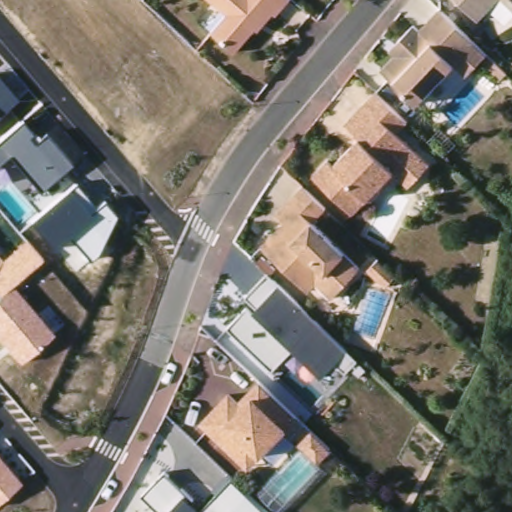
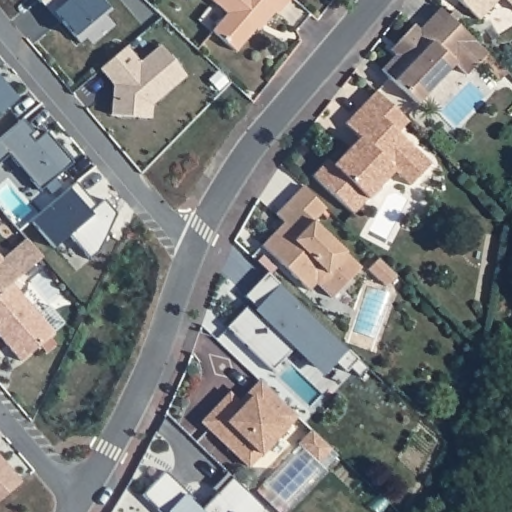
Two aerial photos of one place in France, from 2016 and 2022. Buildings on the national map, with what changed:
new [(75,37),(55,12),(51,15),(38,0),(101,0),(108,8),(75,37)]
unchanged [(240,51),(217,31),(232,13),(216,0),(294,0),(282,14),(280,13),(266,30),(262,27),(240,51)]
unchanged [(456,0),(495,0),(477,20),(456,0)]
unchanged [(503,0),(512,0),(512,10),(503,0)]
unchanged [(512,72),(512,73),(505,81),(485,61),(471,75),(459,63),(421,103),(386,69),(400,55),(394,50),(403,41),(418,24),(424,30),(445,8),(483,45),(512,72)]
new [(100,69),(126,47),(140,63),(160,46),(186,76),(152,105),(151,118),(111,115),(113,96),(114,85),(100,69)]
unchanged [(0,115),(0,74),(21,99),(0,115)]
unchanged [(408,116),(408,117),(397,127),(430,158),(430,159),(427,162),(409,181),(394,166),(381,179),(381,185),(373,193),(367,194),(353,208),(313,170),(328,155),(333,160),(359,133),(345,119),(376,86),(408,116)]
unchanged [(32,132),(29,136),(34,143),(45,133),(71,164),(40,191),(10,155),(0,165),(0,139),(21,121),(32,132)]
unchanged [(318,216),(366,262),(337,292),(321,277),(314,285),(267,240),(281,225),(289,217),(280,209),(308,181),(331,203),(318,216)]
unchanged [(93,211),(105,200),(116,216),(99,250),(89,258),(70,234),(53,248),(30,219),(75,182),(93,211)]
unchanged [(24,237),(41,257),(0,293),(0,255),(1,256),(24,237)]
unchanged [(402,271),(392,282),(373,265),(384,254),(402,271)]
unchanged [(245,308),(252,313),(258,307),(247,296),(266,273),(356,356),(346,367),(337,359),(321,374),(293,347),(272,368),(231,326),(245,308)]
unchanged [(0,295),(13,284),(54,331),(21,361),(0,337),(0,295)]
unchanged [(221,435),(208,423),(208,411),(229,389),(243,401),(252,392),(248,388),(260,376),(297,410),(260,449),(248,461),(221,435)]
unchanged [(330,448),(317,462),(299,445),(313,431),(330,448)]
unchanged [(0,502),(0,457),(21,485),(0,502)]
unchanged [(142,494),(164,471),(186,493),(203,510),(232,481),(264,512),(162,512),(142,494)]

